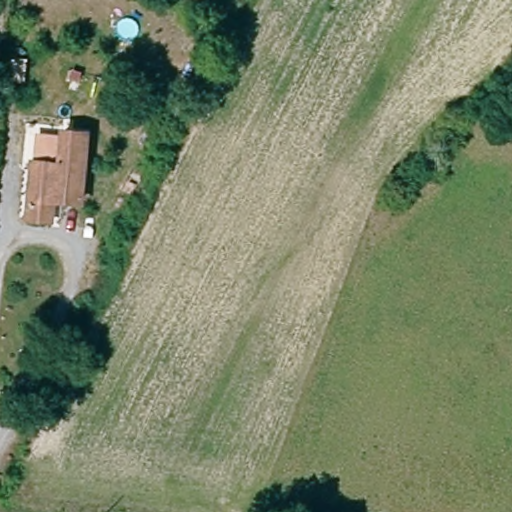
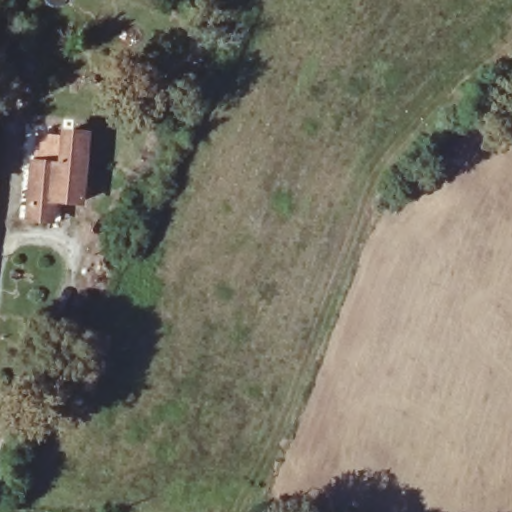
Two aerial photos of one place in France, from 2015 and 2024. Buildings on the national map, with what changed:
unchanged [(82,204),(57,202),(55,222),(28,220),(32,160),(60,162),(62,132),(88,134),(82,204)]
unchanged [(422,155),(433,167),(423,176),(412,163),(422,155)]

